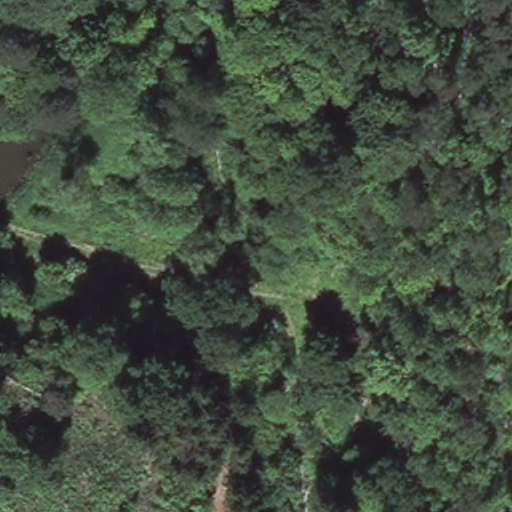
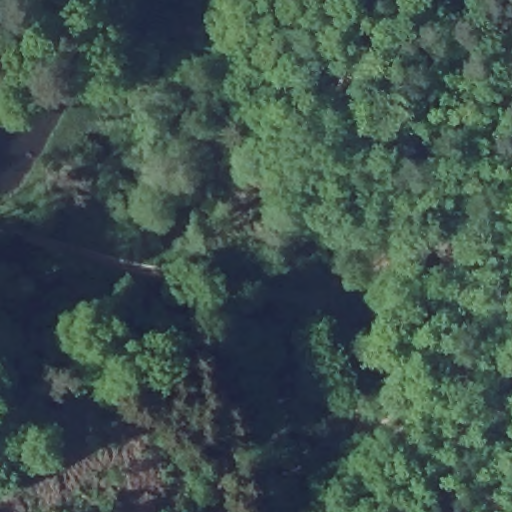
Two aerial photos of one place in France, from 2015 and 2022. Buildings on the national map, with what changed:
unchanged [(103,202),(131,216),(112,257),(82,245),(96,216),(103,202)]

